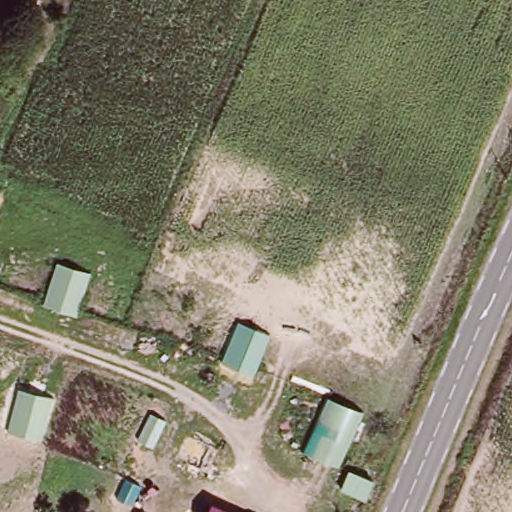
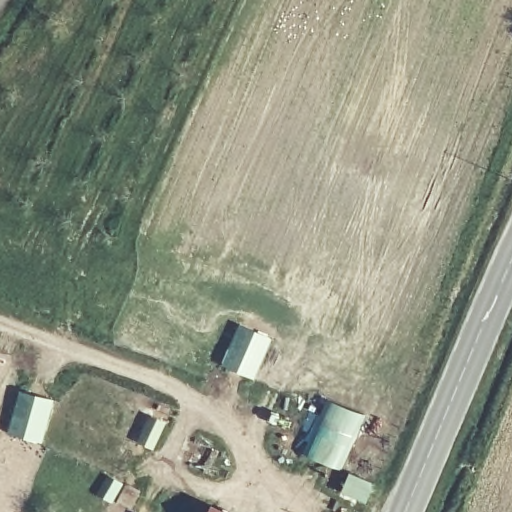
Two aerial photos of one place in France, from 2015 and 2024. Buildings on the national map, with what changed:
demolished [(95,276),(83,320),(49,308),(60,265),(95,276)]
unchanged [(271,337),(254,378),(222,364),(238,324),(271,337)]
unchanged [(55,400),(43,444),(8,435),(18,392),(55,400)]
unchanged [(330,399),(366,414),(341,470),(306,453),(330,399)]
unchanged [(341,490),(350,473),(374,485),(365,502),(341,490)]
unchanged [(219,512),(208,512),(210,508),(219,512)]

